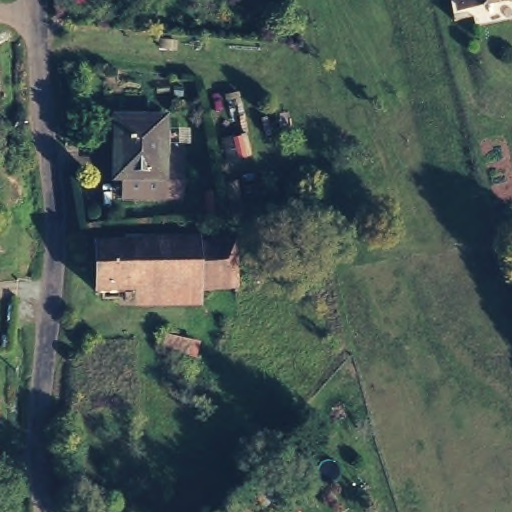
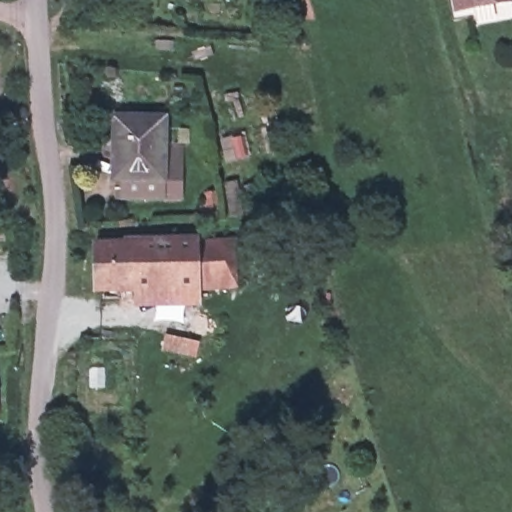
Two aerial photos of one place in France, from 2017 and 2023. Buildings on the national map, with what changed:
unchanged [(457,8),(456,0),(491,0),(491,2),(457,8)]
unchanged [(112,144),(112,139),(114,114),(162,115),(160,142),(178,143),(178,157),(178,194),(122,190),(122,174),(119,174),(112,173),(112,161),(112,144)]
unchanged [(89,288),(89,237),(237,240),(237,289),(89,288)]

